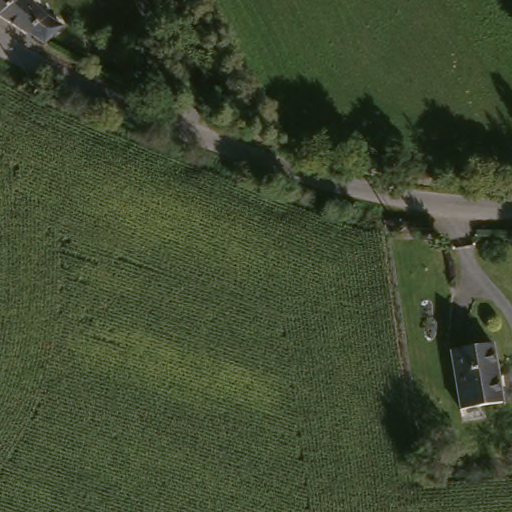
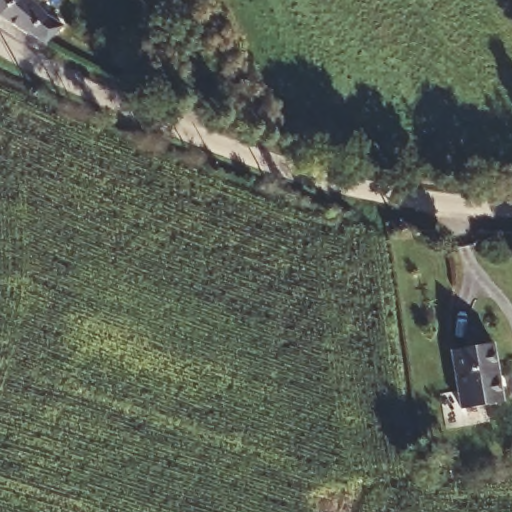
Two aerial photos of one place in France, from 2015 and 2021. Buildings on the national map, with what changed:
unchanged [(54,15),(66,28),(52,38),(46,44),(34,31),(26,36),(15,20),(10,13),(4,17),(0,13),(0,0),(39,0),(54,15)]
unchanged [(453,350),(490,344),(501,405),(464,413),(453,350)]

